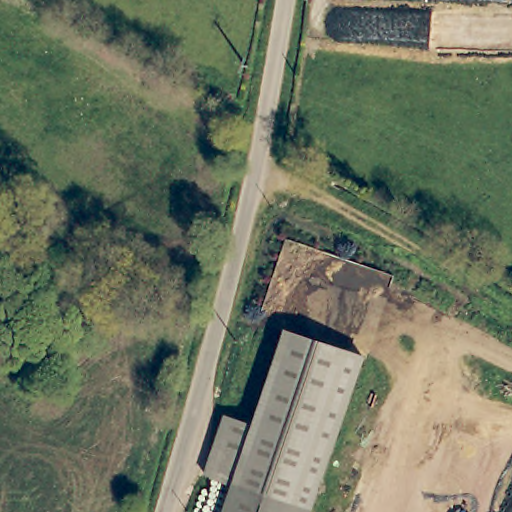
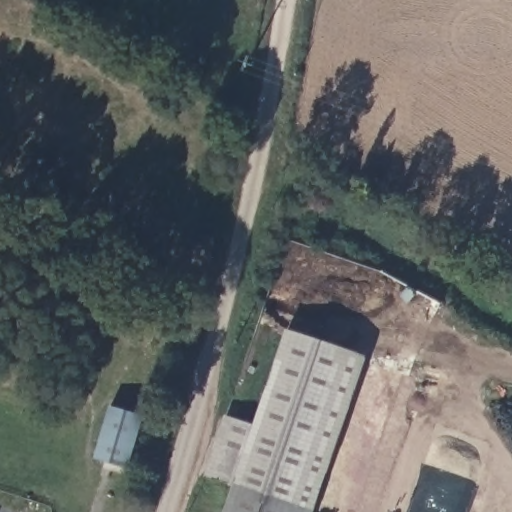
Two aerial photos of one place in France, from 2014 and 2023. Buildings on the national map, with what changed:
unchanged [(233,491),(253,430),(286,333),(344,352),(292,511),(233,491)]
unchanged [(297,512),(292,511),(344,352),(363,359),(313,512),(297,512)]
new [(111,407),(144,417),(127,468),(94,458),(111,407)]
unchanged [(205,482),(224,421),(253,430),(233,491),(205,482)]
unchanged [(292,512),(227,512),(233,491),(292,511),(292,512)]
unchanged [(297,512),(292,512),(292,511),(297,512)]

